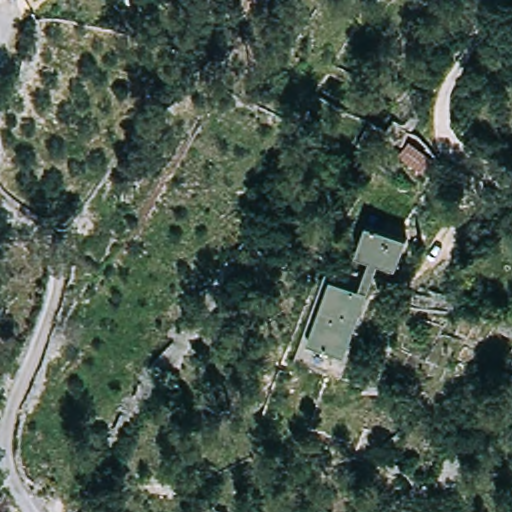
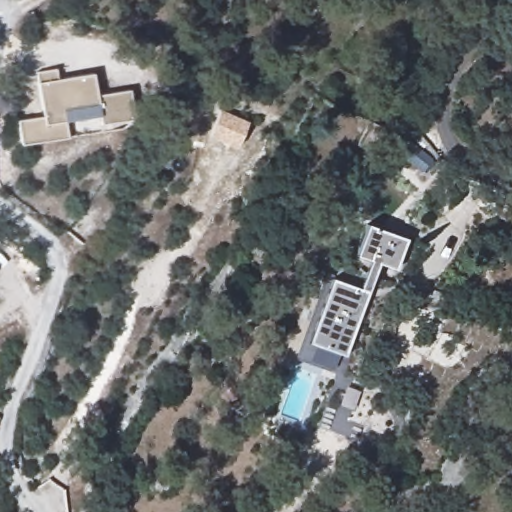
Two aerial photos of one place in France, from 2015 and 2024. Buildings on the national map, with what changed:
new [(58,80),(93,74),(97,96),(132,90),(137,118),(101,124),(100,116),(66,121),(68,138),(20,146),(17,121),(44,117),(38,83),(39,83),(37,72),(56,69),(58,80)]
unchanged [(409,146),(427,159),(419,171),(400,159),(409,146)]
unchanged [(404,240),(393,270),(378,264),(370,285),(345,355),(308,342),(330,283),(332,277),(336,279),(360,288),(363,282),(370,262),(355,256),(367,226),(404,240)]

